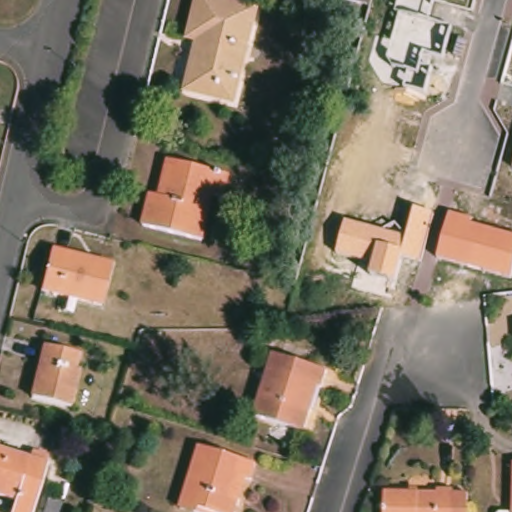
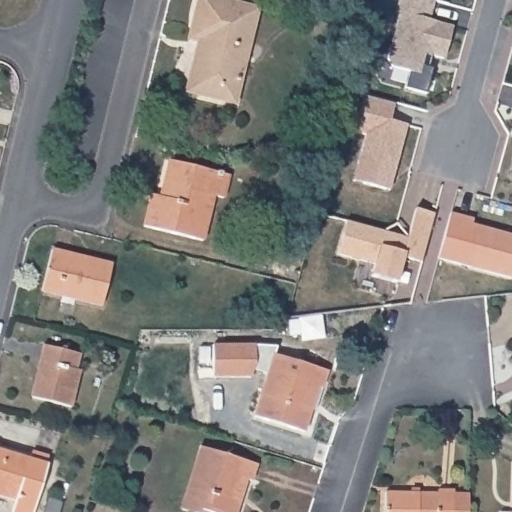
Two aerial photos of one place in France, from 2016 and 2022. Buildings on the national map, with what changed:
unchanged [(337,0),(369,0),(367,7),(337,0)]
unchanged [(400,14),(396,12),(399,0),(430,0),(434,1),(429,21),(452,27),(445,57),(436,55),(426,94),(405,89),(408,73),(395,67),(388,55),(400,14)]
unchanged [(190,47),(201,2),(256,15),(245,61),(198,50),(190,47)]
unchanged [(245,61),(234,107),(187,96),(198,50),(245,61)]
new [(386,190),(363,183),(353,181),(358,163),(366,135),(353,131),(363,95),(395,104),(390,121),(407,125),(395,171),(390,191),(386,190)]
unchanged [(146,202),(154,204),(166,161),(222,175),(217,197),(209,195),(197,241),(139,226),(146,202)]
unchanged [(346,222),(382,232),(397,224),(404,235),(411,209),(433,214),(421,262),(403,258),(397,284),(371,277),(375,261),(337,254),(346,222)]
unchanged [(473,219),(473,225),(512,235),(512,277),(438,257),(451,213),(473,219)]
unchanged [(51,251),(112,266),(102,304),(42,289),(51,251)]
new [(253,372),(252,378),(212,378),(212,345),(278,346),(276,357),(269,355),(263,374),(253,372)]
unchanged [(38,363),(34,362),(38,346),(74,354),(70,372),(74,373),(66,407),(30,398),(38,363)]
unchanged [(269,355),(321,371),(310,411),(306,409),(300,432),(250,417),(269,355)]
unchanged [(196,447),(251,463),(246,480),(237,477),(231,497),(237,498),(232,512),(184,512),(177,510),(180,498),(196,447)]
unchanged [(49,465),(35,512),(15,512),(18,502),(0,496),(0,450),(49,465)]
unchanged [(512,465),(512,512),(509,512),(510,465),(512,465)]
unchanged [(391,494),(442,495),(442,491),(458,491),(458,495),(473,495),(473,508),(473,512),(390,512),(391,494)]
unchanged [(50,500),(65,505),(62,512),(47,512),(50,500)]

